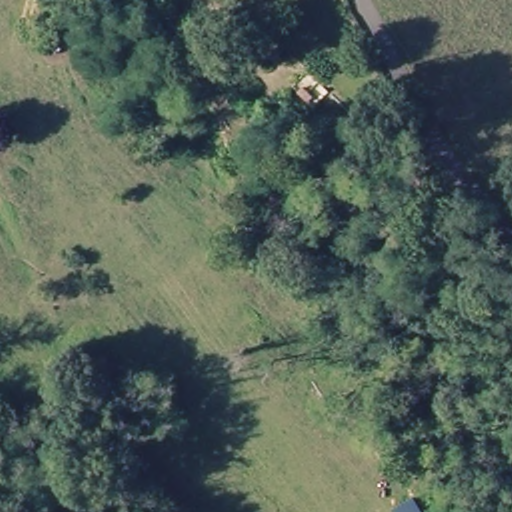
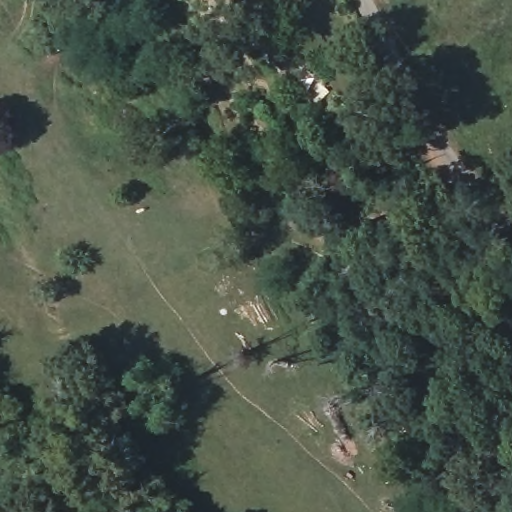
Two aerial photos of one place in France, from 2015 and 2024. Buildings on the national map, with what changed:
[]

